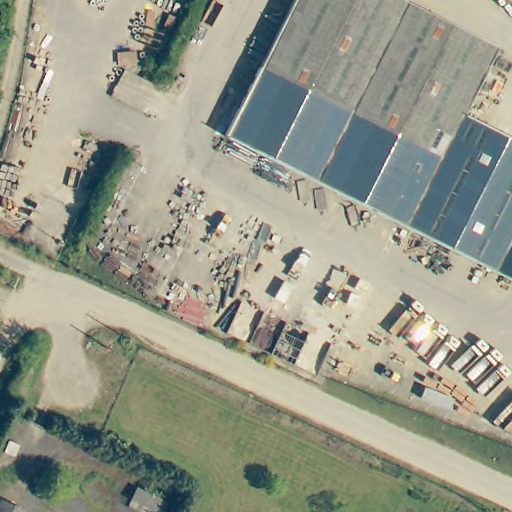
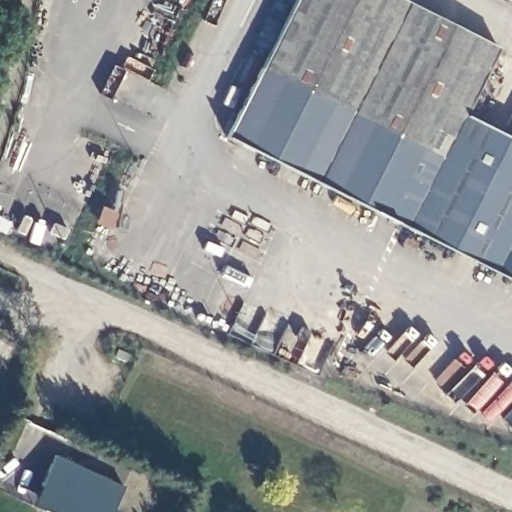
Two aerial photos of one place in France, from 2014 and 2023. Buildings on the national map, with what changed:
unchanged [(463,111),(512,136),(512,277),(225,133),(293,0),(409,0),(496,44),(463,111)]
new [(110,512),(48,512),(30,503),(55,452),(123,486),(110,512)]
demolished [(162,490),(156,503),(133,493),(139,478),(162,490)]
demolished [(0,503),(20,512),(0,512),(0,503)]

